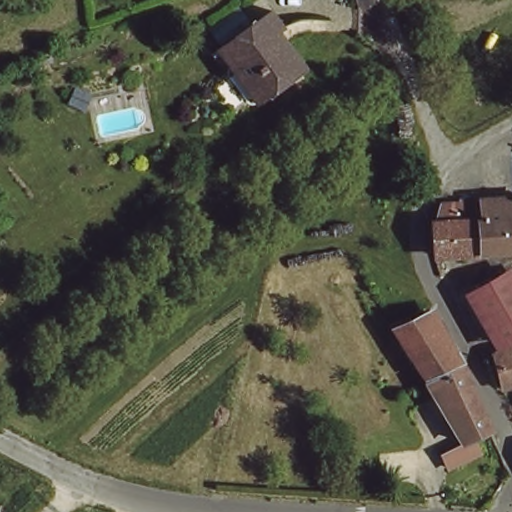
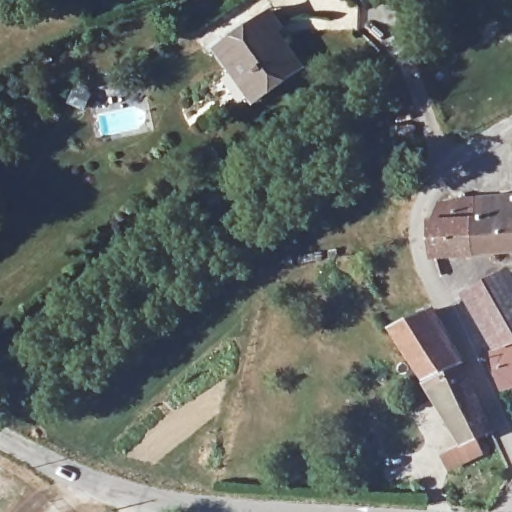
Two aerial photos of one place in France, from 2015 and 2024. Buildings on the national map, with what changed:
unchanged [(229,70),(215,52),(270,14),(282,29),(260,45),(267,54),(276,47),(279,46),(282,46),(285,47),(288,52),(299,66),(300,69),(299,72),(297,75),(294,77),(252,106),(249,107),(247,107),(244,105),(240,101),(226,80),(225,77),(225,73),(226,72),(229,70)]
unchanged [(432,264),(432,262),(428,232),(435,232),(436,215),(467,214),(469,230),(479,230),(479,208),(497,207),(512,206),(512,258),(503,258),(432,264)]
unchanged [(499,348),(467,294),(505,275),(510,284),(512,284),(512,339),(499,348)]
unchanged [(425,388),(395,338),(433,323),(464,374),(425,388)]
unchanged [(499,388),(488,356),(512,350),(512,385),(499,388)]
unchanged [(450,463),(447,458),(469,449),(431,392),(466,378),(495,437),(480,445),(487,462),(477,466),(455,476),(450,463)]

